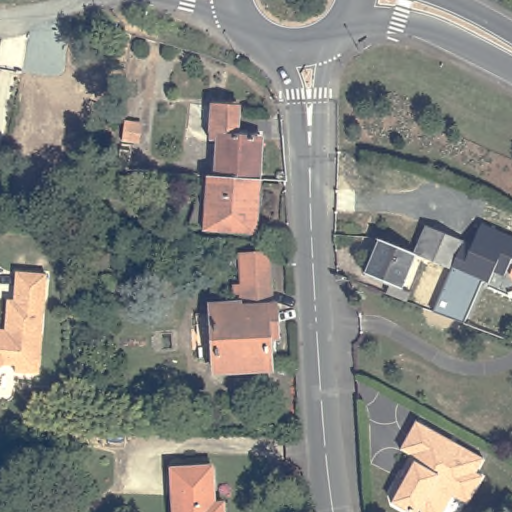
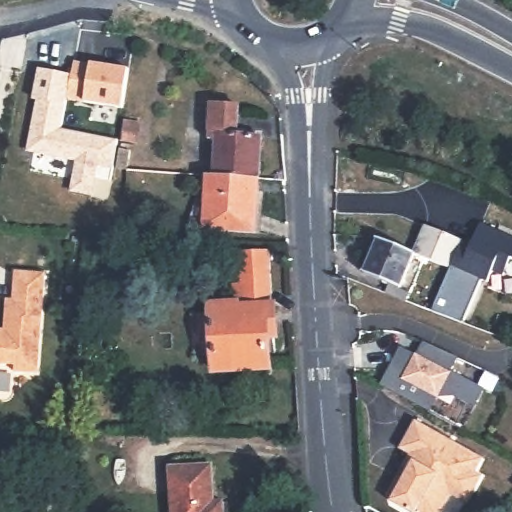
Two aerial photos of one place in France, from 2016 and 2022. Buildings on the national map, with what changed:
new [(123,109),(69,99),(64,129),(118,139),(114,168),(98,166),(93,195),(70,192),(75,162),(26,151),(37,101),(33,100),(39,69),(70,74),(73,61),(129,68),(123,109)]
unchanged [(219,139),(212,138),(214,104),(242,106),(241,136),(266,138),(263,178),(217,175),(219,139)]
unchanged [(217,175),(263,178),(260,232),(207,229),(210,175),(217,175)]
unchanged [(433,224),(469,240),(458,267),(421,253),(433,224)]
unchanged [(453,266),(458,267),(469,240),(473,242),(480,225),(512,238),(512,258),(504,275),(493,271),(488,282),(484,280),(466,323),(434,311),(453,266)]
unchanged [(421,253),(407,288),(416,292),(412,301),(392,293),(396,284),(371,273),(386,238),(421,253)]
unchanged [(216,306),(221,305),(240,305),(241,308),(246,308),(246,301),(240,301),(240,292),(245,292),(244,253),(274,252),(278,327),(270,327),(272,367),(220,369),(216,306)]
unchanged [(13,371),(13,364),(1,363),(0,364),(0,329),(4,329),(6,299),(13,300),(16,272),(46,274),(36,373),(13,371)]
unchanged [(457,358),(453,372),(484,387),(477,405),(457,396),(438,399),(431,410),(382,386),(392,363),(407,371),(425,342),(457,358)]
unchanged [(444,512),(404,512),(391,505),(389,495),(409,457),(399,451),(415,423),(483,460),(475,474),(482,477),(474,492),(467,505),(452,497),(444,512)]
unchanged [(214,500),(221,501),(222,512),(172,512),(169,467),(212,465),(214,500)]

